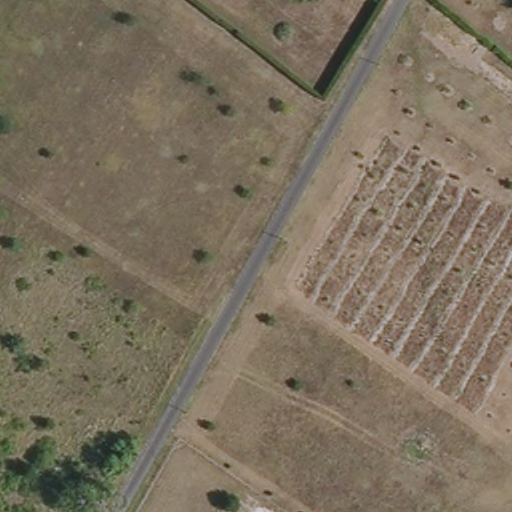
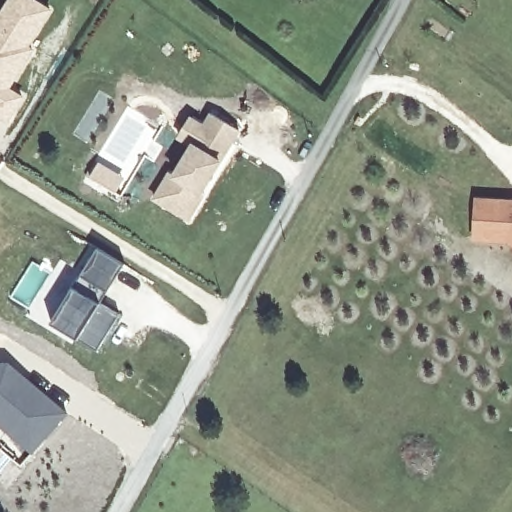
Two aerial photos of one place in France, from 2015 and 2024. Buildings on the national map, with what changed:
new [(1,18),(12,0),(30,0),(50,13),(27,50),(32,53),(25,63),(8,91),(21,100),(7,124),(0,119),(0,17),(1,18)]
new [(175,179),(193,149),(179,141),(191,122),(204,131),(212,118),(239,135),(201,196),(203,197),(188,223),(154,203),(171,177),(175,179)]
new [(512,197),(512,247),(507,244),(471,241),(473,195),(512,197)]
new [(123,267),(106,294),(99,306),(118,317),(95,353),(49,325),(96,251),(123,267)]
new [(8,360),(67,413),(29,456),(0,430),(0,360),(8,360)]

